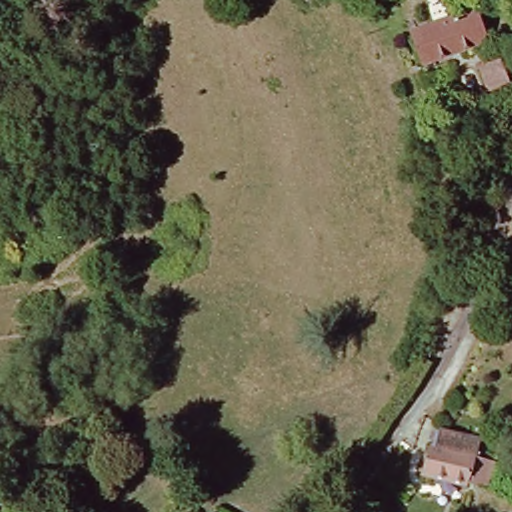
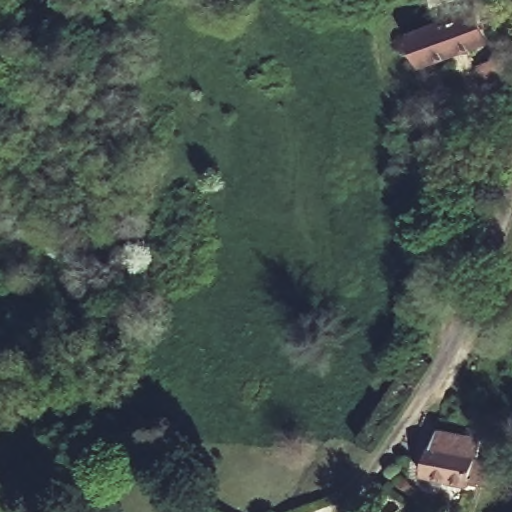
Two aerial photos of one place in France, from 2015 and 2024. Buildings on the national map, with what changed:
unchanged [(470,10),(484,40),(427,65),(412,35),(470,10)]
unchanged [(505,83),(487,90),(475,60),(490,54),(505,83)]
unchanged [(492,485),(477,480),(477,483),(430,472),(439,438),(441,425),(473,433),(469,445),(485,449),(484,454),(499,458),(492,485)]

